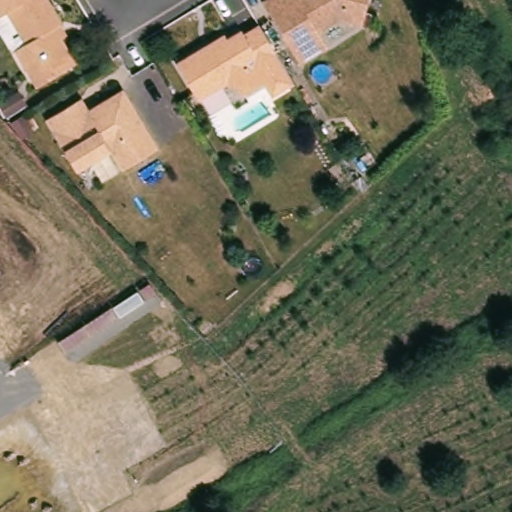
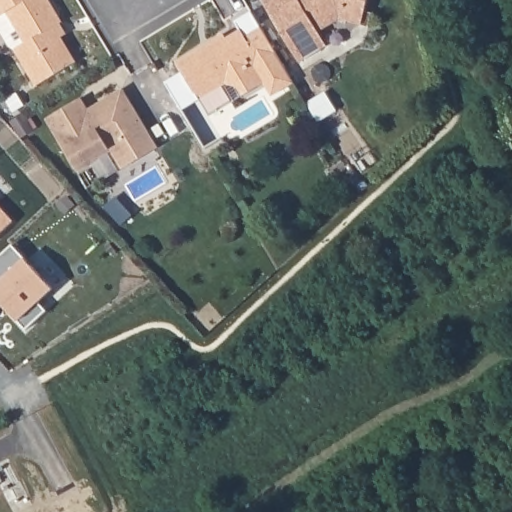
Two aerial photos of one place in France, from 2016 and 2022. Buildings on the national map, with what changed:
unchanged [(81,58),(41,82),(19,45),(13,42),(0,21),(0,0),(56,0),(67,18),(64,19),(70,30),(66,33),(81,58)]
unchanged [(366,20),(365,20),(343,15),(323,27),(331,41),(303,58),(303,57),(269,0),(371,0),(366,20)]
unchanged [(248,29),(263,20),(281,49),(259,62),(268,78),(247,91),(242,82),(230,79),(203,95),(181,59),(208,42),(229,30),(231,33),(245,25),(248,29)]
unchanged [(163,142),(164,145),(146,156),(144,153),(142,150),(125,161),(116,146),(82,166),(51,114),(86,93),(93,105),(128,84),(163,142)]
unchanged [(0,108),(0,104),(16,95),(23,107),(6,117),(0,108)]
new [(0,302),(0,255),(12,244),(53,288),(39,302),(47,311),(26,330),(9,311),(2,304),(0,302)]

